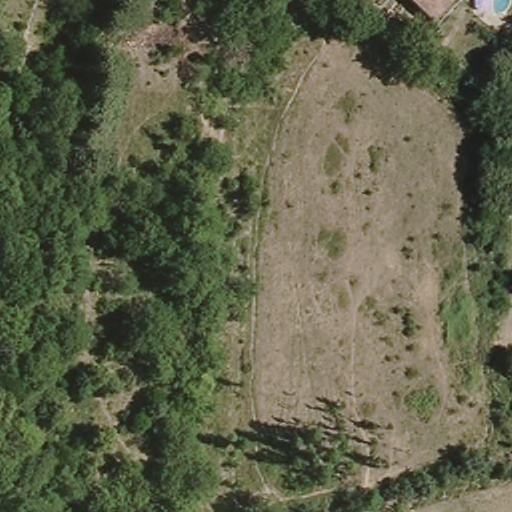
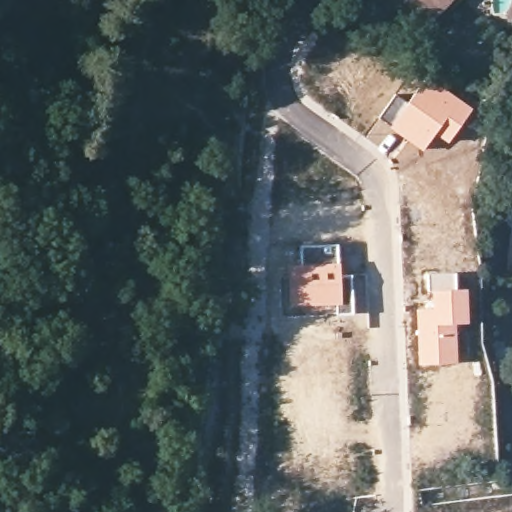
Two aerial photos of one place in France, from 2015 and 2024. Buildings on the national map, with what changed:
unchanged [(476,1),(447,32),(413,0),(474,0),(476,1)]
new [(395,95),(405,102),(427,75),(472,107),(448,143),(435,135),(422,151),(378,118),(395,95)]
new [(300,263),(300,245),(338,243),(342,274),(354,273),(355,313),(338,314),(337,305),(290,305),(288,265),(300,263)]
new [(432,307),(431,291),(428,291),(427,272),(455,271),(456,287),(467,287),(469,323),(456,324),(458,363),(418,365),(416,308),(432,307)]

